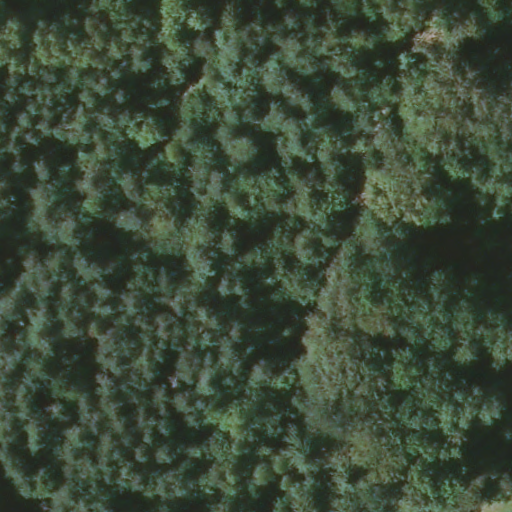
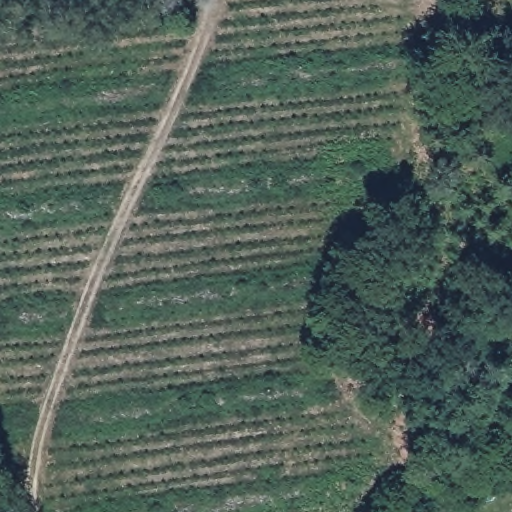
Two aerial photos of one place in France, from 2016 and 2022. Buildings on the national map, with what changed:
unchanged [(455,512),(446,512),(453,508),(455,512)]

